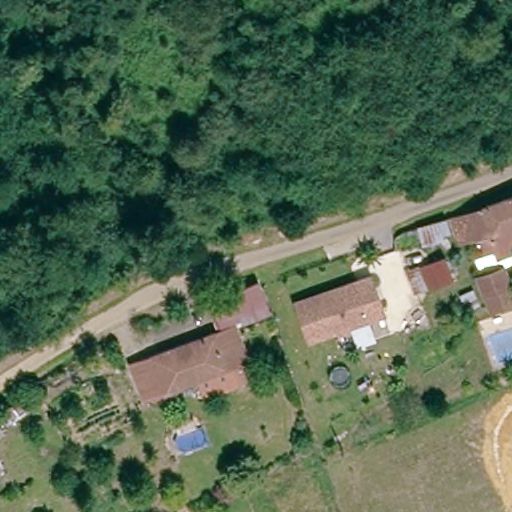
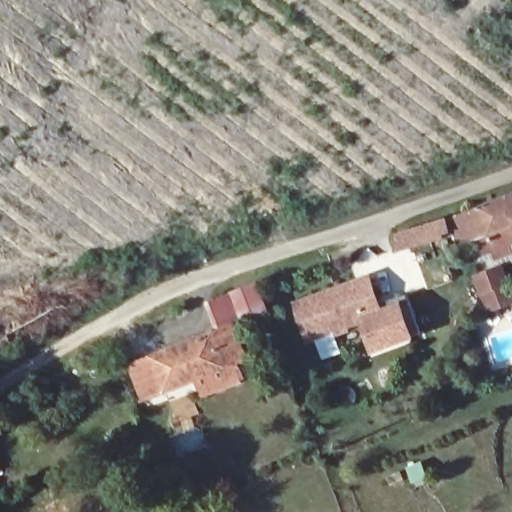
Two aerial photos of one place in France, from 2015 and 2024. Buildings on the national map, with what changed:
unchanged [(466,215),(512,196),(512,224),(475,239),(466,215)]
unchanged [(441,223),(446,237),(423,244),(419,230),(441,223)]
unchanged [(512,305),(487,312),(480,289),(476,290),(475,285),(473,281),(490,275),(502,271),(512,299),(512,305)]
unchanged [(380,280),(391,316),(316,341),(304,304),(380,280)]
unchanged [(265,285),(274,314),(266,316),(249,323),(239,293),(252,289),(265,285)]
new [(364,325),(391,316),(388,307),(403,302),(418,340),(375,355),(364,325)]
unchanged [(133,366),(150,356),(236,324),(252,360),(235,368),(197,383),(167,396),(150,404),(133,366)]
unchanged [(235,368),(245,394),(209,404),(197,383),(235,368)]
unchanged [(5,422),(12,435),(0,442),(0,424),(5,422)]
unchanged [(10,477),(0,481),(0,451),(10,477)]

